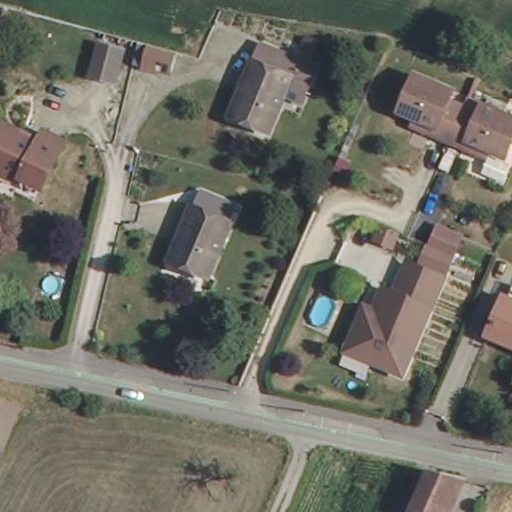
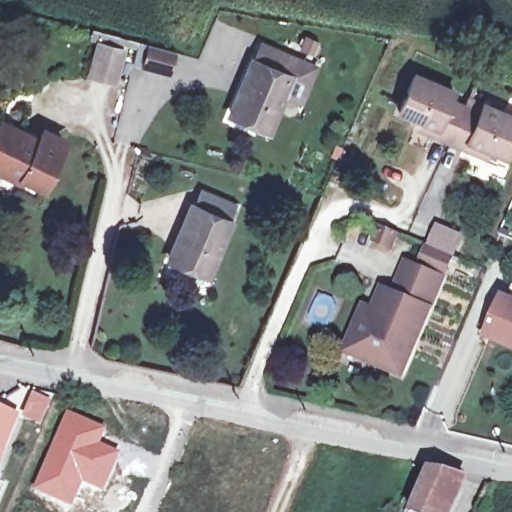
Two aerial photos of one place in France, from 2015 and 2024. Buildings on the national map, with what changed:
new [(147,43),(184,53),(178,74),(141,64),(147,43)]
new [(94,44),(119,50),(112,80),(87,74),(94,44)]
unchanged [(274,102),(256,142),(220,126),(244,71),(245,71),(252,54),(307,77),(299,97),(293,111),(274,102)]
unchanged [(397,107),(414,70),(451,87),(447,96),(463,102),(463,103),(477,109),(481,100),(512,114),(512,135),(504,154),(466,137),(463,144),(448,137),(432,131),(435,124),(397,107)]
unchanged [(35,143),(37,132),(59,137),(50,181),(29,177),(27,185),(0,179),(0,136),(35,143)]
unchanged [(231,222),(207,275),(171,258),(195,205),(231,222)]
unchanged [(374,238),(380,225),(398,232),(392,246),(374,238)]
unchanged [(437,227),(460,237),(451,256),(443,252),(429,246),(437,227)]
unchanged [(348,335),(364,299),(376,305),(379,299),(377,293),(383,280),(394,285),(407,255),(442,270),(401,365),(360,347),(345,341),(348,335)]
unchanged [(486,333),(502,297),(512,302),(512,345),(486,333)]
new [(52,397),(41,425),(22,416),(30,391),(52,397)]
demolished [(21,402),(3,442),(0,440),(0,393),(21,402)]
new [(16,416),(0,455),(0,409),(16,416)]
new [(66,412),(105,427),(100,443),(119,452),(103,492),(83,484),(71,507),(34,491),(66,412)]
unchanged [(457,475),(441,512),(407,512),(427,467),(457,475)]

